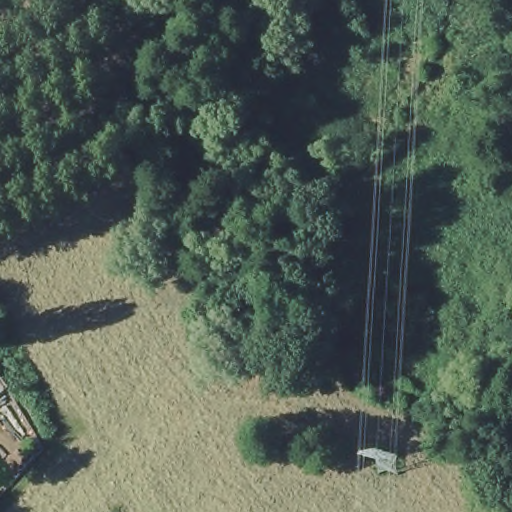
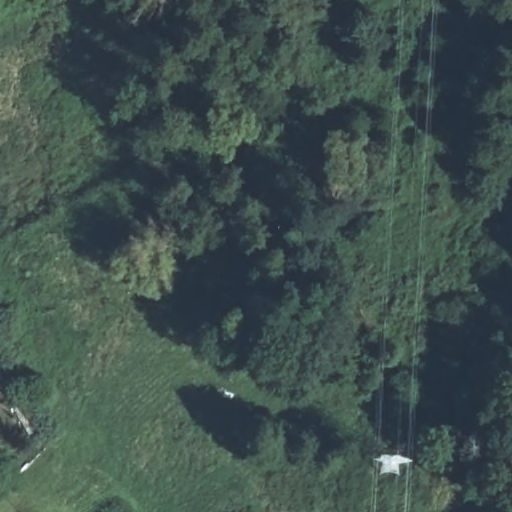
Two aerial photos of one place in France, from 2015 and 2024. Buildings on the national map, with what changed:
unchanged [(14,378),(0,394),(0,365),(14,378)]

